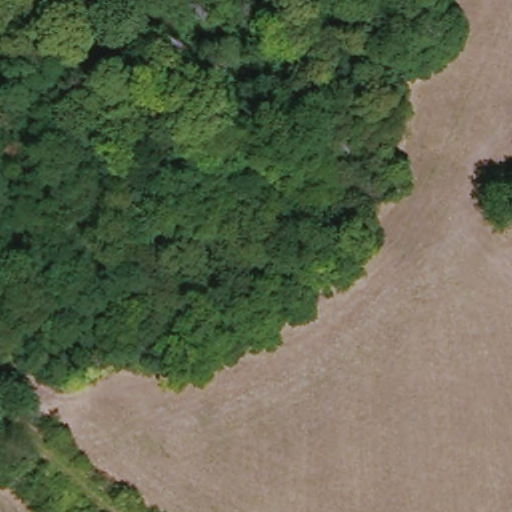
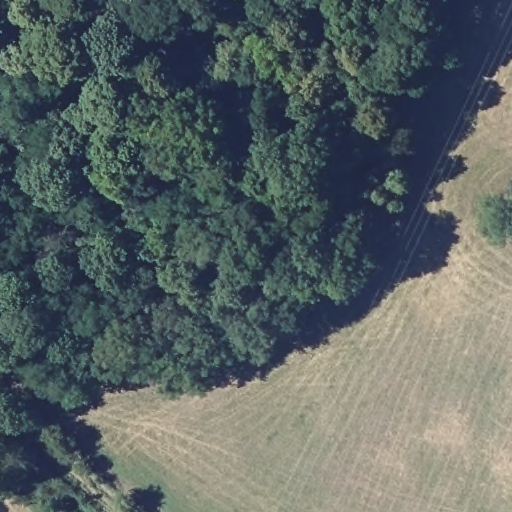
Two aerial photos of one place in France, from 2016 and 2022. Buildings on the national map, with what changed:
[]

